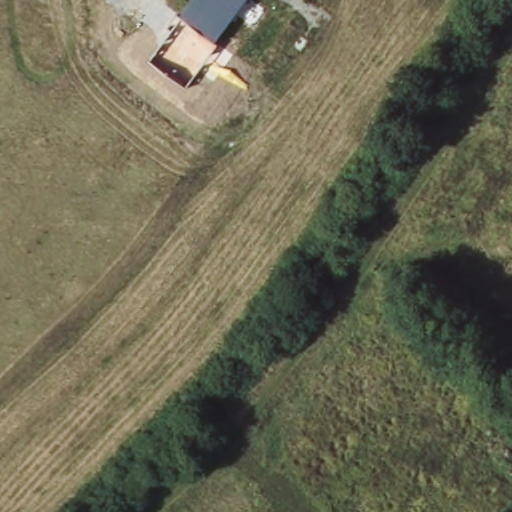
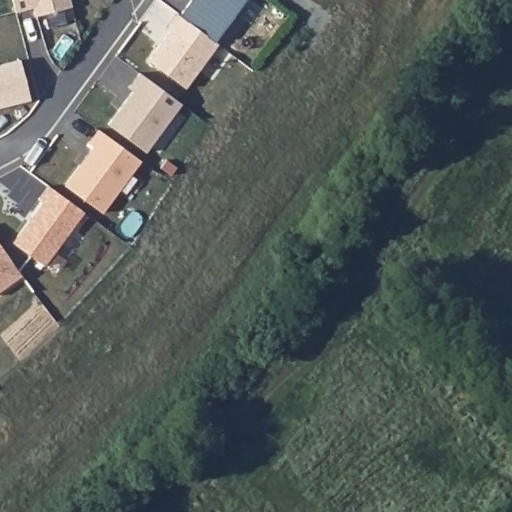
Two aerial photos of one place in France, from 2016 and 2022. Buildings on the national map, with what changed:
new [(35,17),(32,9),(15,13),(12,0),(69,0),(71,7),(35,17)]
unchanged [(219,45),(187,86),(150,60),(194,0),(246,0),(215,42),(219,45)]
new [(20,59),(32,101),(0,109),(0,64),(20,59)]
new [(133,91),(130,88),(140,74),(181,104),(146,152),(109,125),(133,91)]
new [(93,147),(89,144),(99,130),(140,161),(102,213),(65,186),(93,147)]
new [(42,203),(38,200),(49,186),(84,212),(44,266),(12,243),(42,203)]
new [(21,275),(0,291),(0,246),(21,275)]

